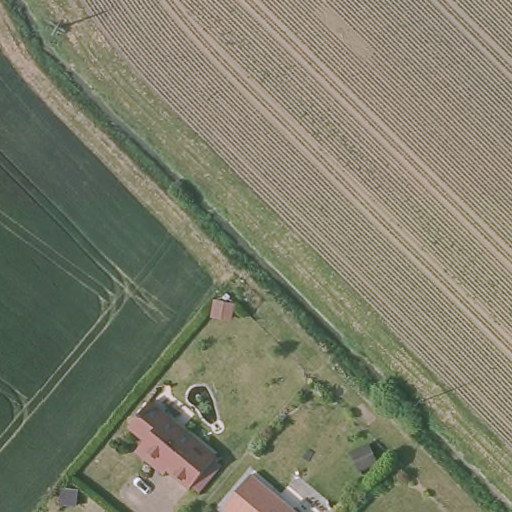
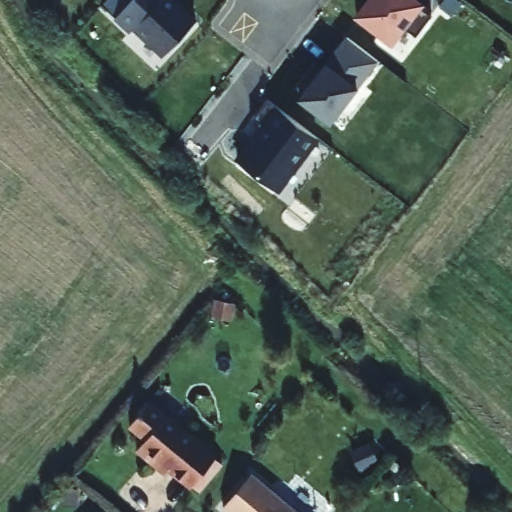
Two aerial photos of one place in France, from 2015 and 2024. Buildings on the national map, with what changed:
new [(101,4),(105,0),(132,0),(116,17),(101,4)]
new [(169,0),(194,22),(163,56),(133,29),(129,34),(114,20),(131,0),(169,0)]
new [(419,6),(431,15),(415,36),(402,26),(391,41),(356,15),(367,0),(366,0),(415,0),(420,3),(419,6)]
new [(331,122),(291,92),(307,71),(315,77),(347,37),(378,60),(331,122)]
new [(317,137),(277,189),(238,159),(263,126),(252,117),(267,98),(317,137)]
unchanged [(231,317),(213,314),(215,300),(234,304),(231,317)]
unchanged [(216,456),(191,486),(158,459),(158,460),(151,460),(137,449),(146,438),(130,425),(149,401),(216,456)]
unchanged [(359,470),(351,452),(369,444),(377,462),(359,470)]
unchanged [(222,508),(250,474),(295,512),(227,512),(222,508)]

